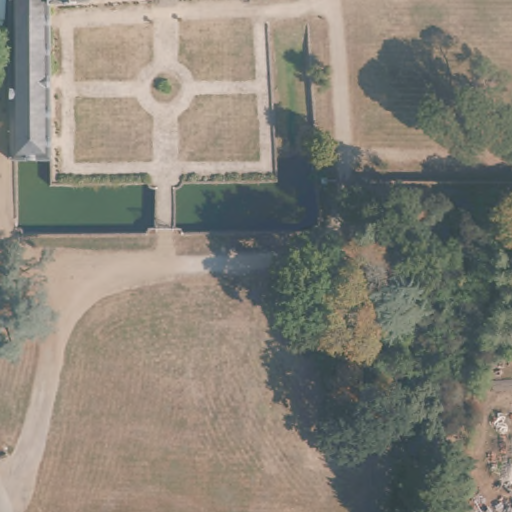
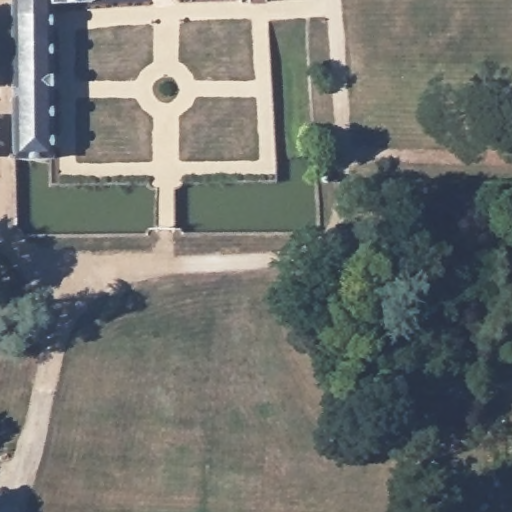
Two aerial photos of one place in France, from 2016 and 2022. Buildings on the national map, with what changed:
unchanged [(49,0),(50,7),(54,159),(15,159),(12,0),(49,0)]
unchanged [(50,7),(49,0),(94,0),(94,4),(50,7)]

